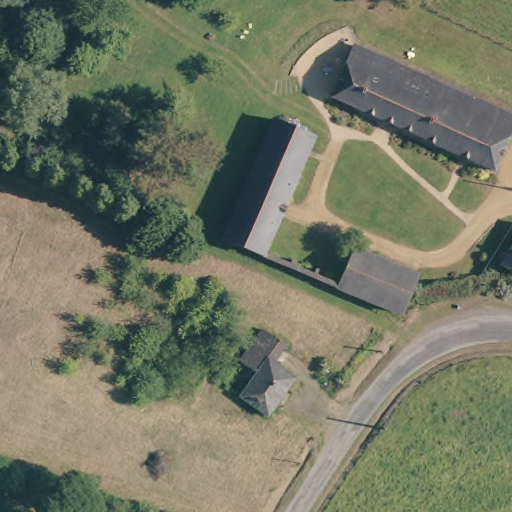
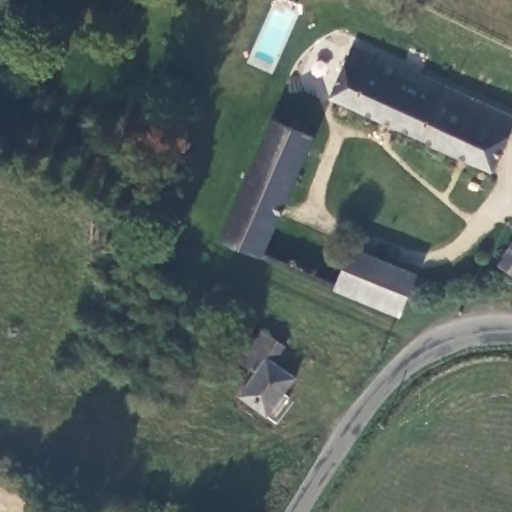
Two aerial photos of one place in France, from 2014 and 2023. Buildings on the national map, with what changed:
unchanged [(354,44),(512,116),(512,133),(494,172),(332,96),(354,44)]
unchanged [(263,256),(221,238),(272,120),(316,137),(283,214),(263,256)]
unchanged [(512,274),(492,262),(511,232),(512,233),(512,274)]
unchanged [(401,314),(333,286),(351,247),(419,273),(401,314)]
unchanged [(268,417),(240,397),(255,373),(239,360),(262,329),(287,345),(275,362),(296,377),(268,417)]

